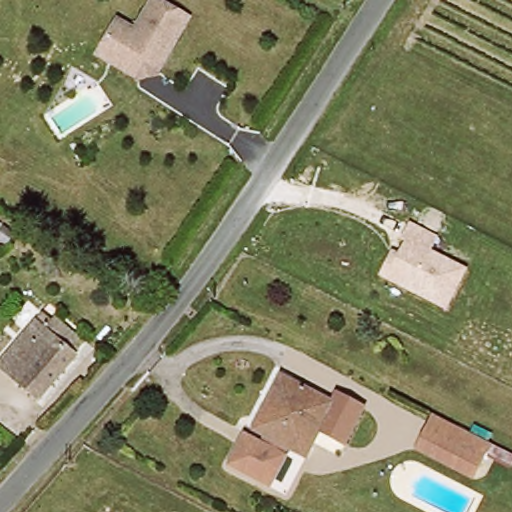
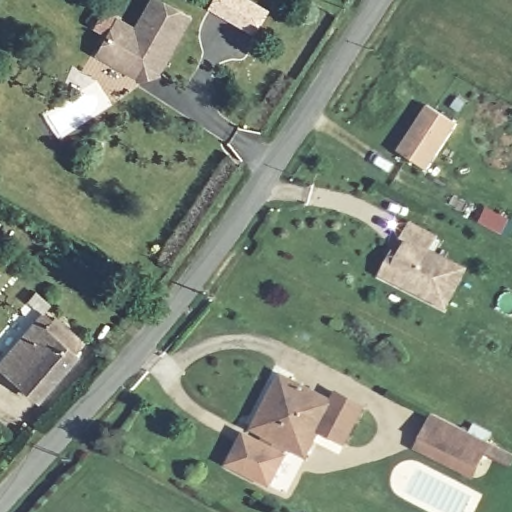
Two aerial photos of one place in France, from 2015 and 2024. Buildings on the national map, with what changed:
unchanged [(97,51),(116,18),(134,28),(150,0),(160,0),(187,15),(155,69),(153,72),(141,76),(136,74),(97,51)]
new [(213,0),(254,0),(270,9),(255,35),(209,8),(213,0)]
new [(398,151),(428,106),(457,125),(427,170),(398,151)]
unchanged [(438,237),(432,250),(468,268),(446,310),(380,275),(392,252),(397,255),(404,242),(400,240),(408,221),(438,237)]
unchanged [(60,323),(86,345),(39,400),(0,368),(45,315),(58,326),(60,323)]
unchanged [(257,426),(281,377),(332,402),(336,393),(362,406),(344,442),(316,428),(306,450),(290,442),(268,432),(257,426)]
unchanged [(492,441),(479,466),(423,437),(435,413),(492,441)]
unchanged [(228,460),(244,431),(263,441),(268,432),(290,442),(285,452),(288,453),(273,484),(228,460)]
unchanged [(479,466),(470,483),(414,454),(423,437),(479,466)]

